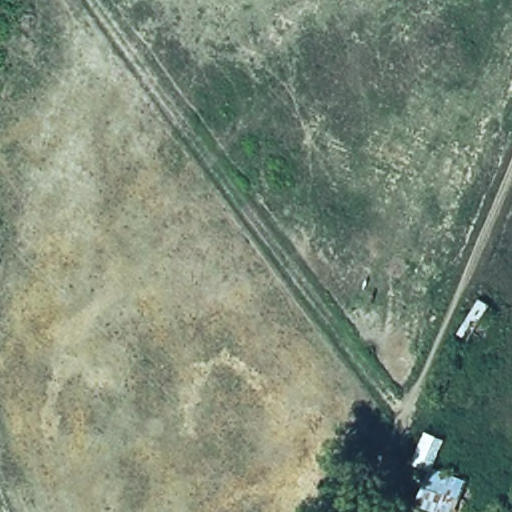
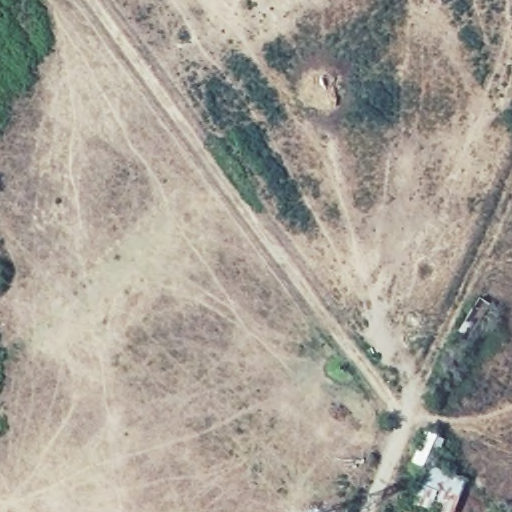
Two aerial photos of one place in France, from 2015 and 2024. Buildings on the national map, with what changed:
unchanged [(449,512),(434,512),(413,507),(428,468),(462,481),(449,512)]

